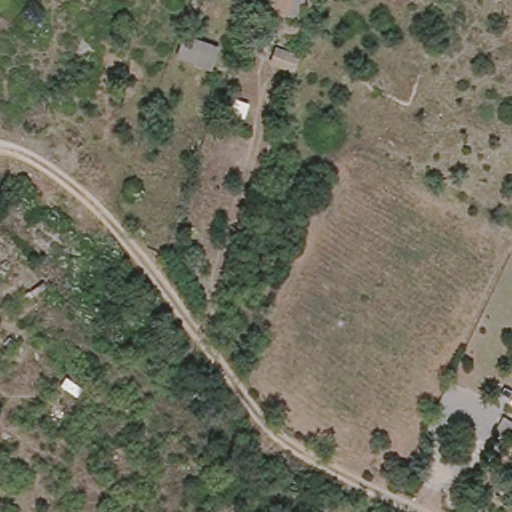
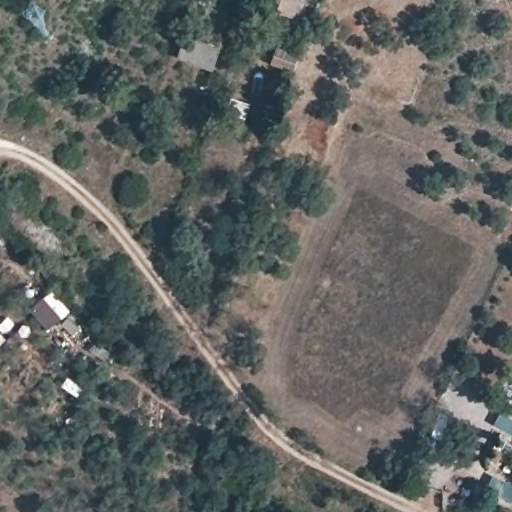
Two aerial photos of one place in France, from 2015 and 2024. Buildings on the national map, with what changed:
unchanged [(297,16),(263,6),(265,0),(302,0),(297,16)]
unchanged [(178,57),(188,34),(220,45),(213,67),(178,57)]
unchanged [(303,49),(296,71),(272,64),(279,43),(303,49)]
unchanged [(512,416),(512,447),(494,437),(505,412),(512,416)]

